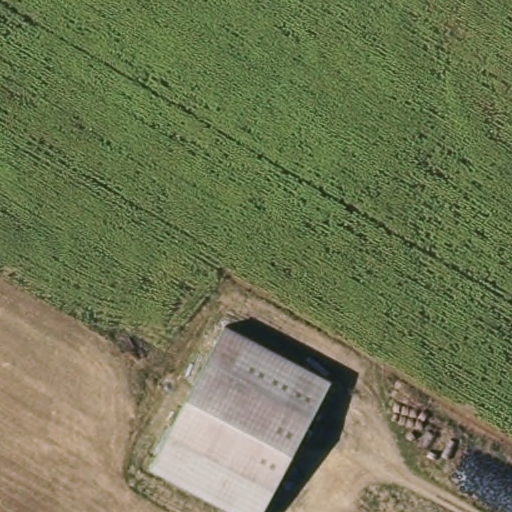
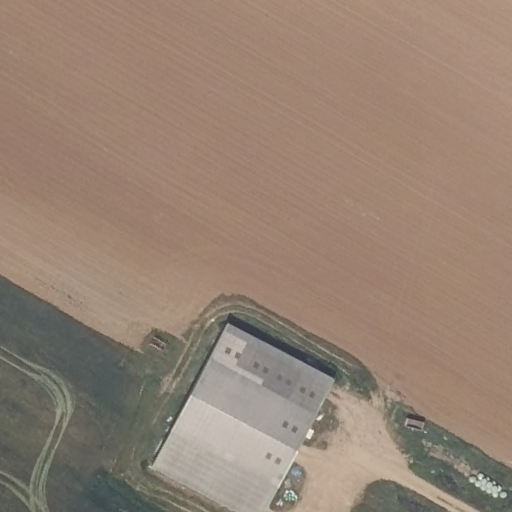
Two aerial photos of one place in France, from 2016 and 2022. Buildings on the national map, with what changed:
unchanged [(152,468),(227,323),(332,379),(262,512),(235,512),(152,468)]

